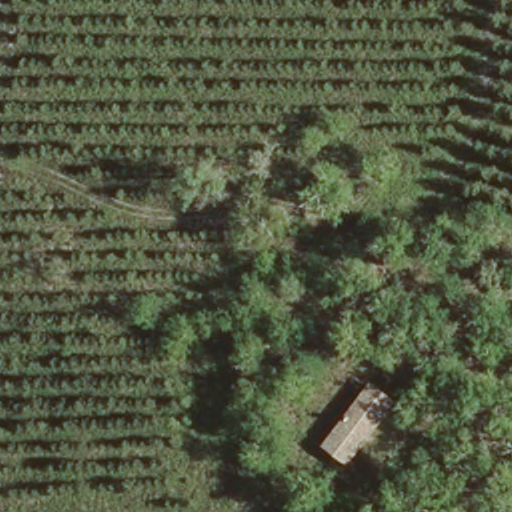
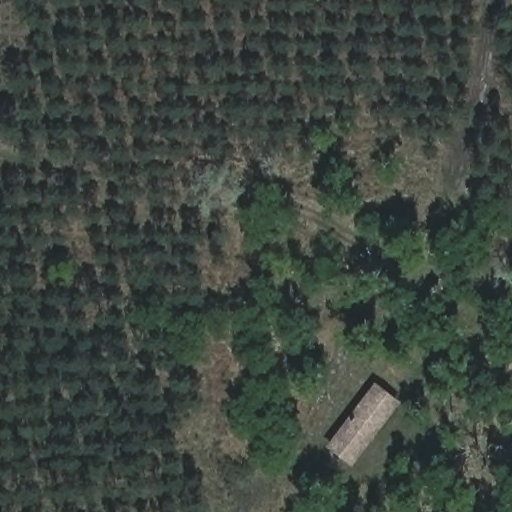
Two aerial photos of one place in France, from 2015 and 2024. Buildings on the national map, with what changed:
unchanged [(313,455),(385,363),(406,377),(341,473),(313,455)]

